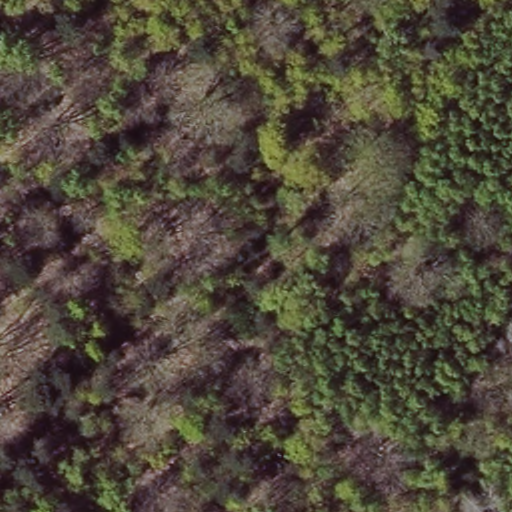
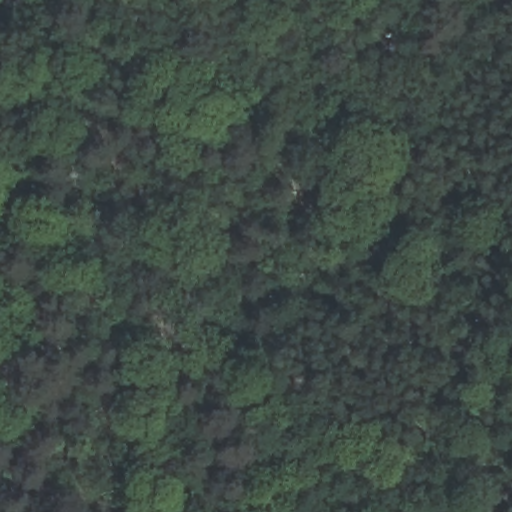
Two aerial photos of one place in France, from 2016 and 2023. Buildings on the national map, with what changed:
unchanged [(270,307),(252,328),(239,316),(260,295),(270,307)]

